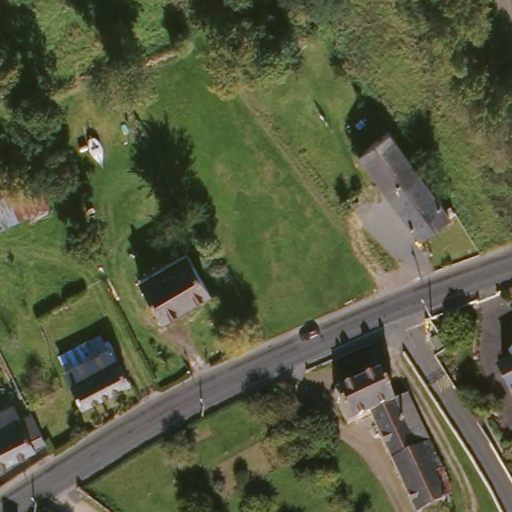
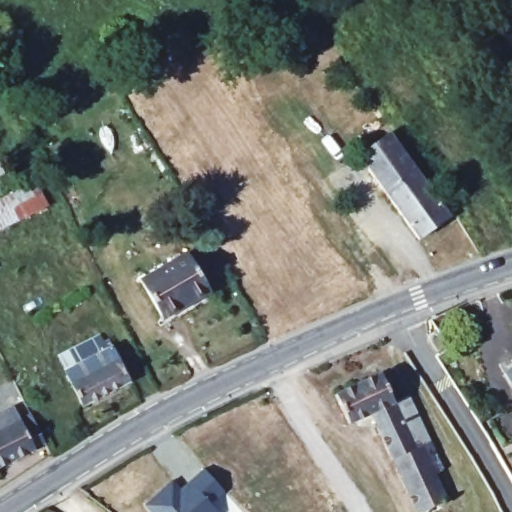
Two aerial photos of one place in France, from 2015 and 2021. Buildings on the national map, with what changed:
unchanged [(368,147),(393,129),(439,194),(447,207),(453,204),(457,210),(453,212),(455,216),(422,237),(361,151),(368,147)]
unchanged [(23,197),(29,214),(0,224),(0,205),(6,202),(23,197)]
unchanged [(187,255),(211,293),(166,322),(143,282),(187,255)]
unchanged [(61,355),(72,350),(79,362),(80,362),(87,358),(105,348),(102,344),(111,341),(129,380),(82,403),(65,369),(68,367),(61,355)]
unchanged [(504,371),(510,368),(512,368),(512,386),(504,371)]
unchanged [(445,502),(448,508),(440,512),(420,512),(375,413),(353,422),(341,392),(348,388),(386,372),(399,401),(414,394),(421,412),(446,468),(460,497),(451,500),(445,502)]
unchanged [(21,417),(40,451),(0,472),(0,419),(17,410),(21,417)]
unchanged [(326,428),(331,436),(323,442),(318,435),(326,428)]
new [(190,478),(205,466),(225,487),(210,501),(220,512),(154,512),(145,502),(172,477),(181,487),(190,478)]

